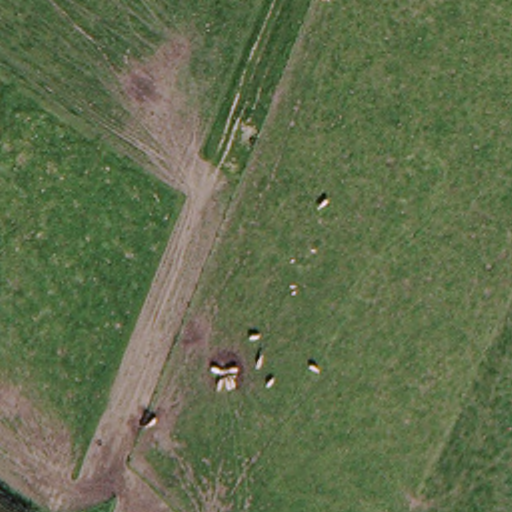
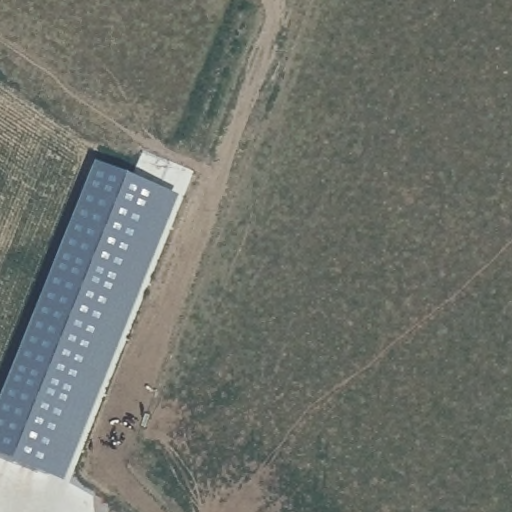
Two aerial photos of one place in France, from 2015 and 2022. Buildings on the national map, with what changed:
new [(65,471),(0,450),(0,410),(94,164),(175,195),(65,471)]

